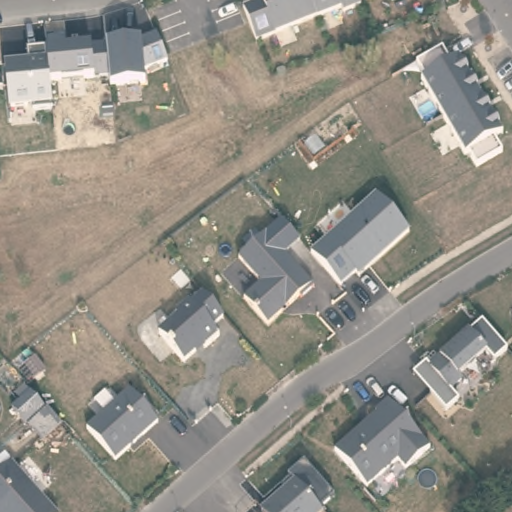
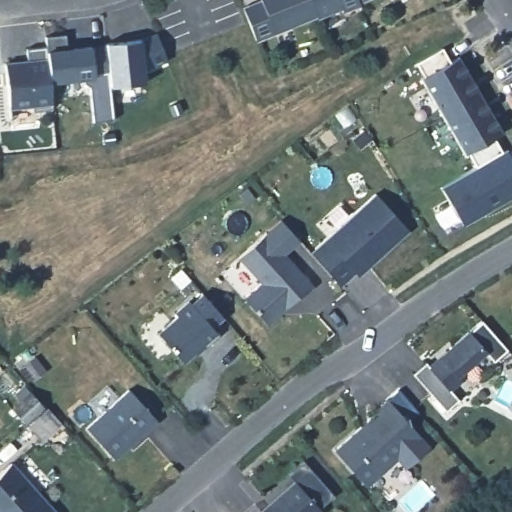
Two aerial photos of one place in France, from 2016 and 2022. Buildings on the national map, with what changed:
unchanged [(245,8),(262,1),(262,0),(360,0),(259,42),(245,8)]
unchanged [(5,62),(27,60),(26,49),(44,47),(44,36),(63,35),(66,47),(138,41),(155,36),(164,62),(142,72),(143,82),(108,85),(107,78),(49,85),(51,106),(8,109),(5,62)]
unchanged [(440,47),(449,62),(456,57),(501,131),(494,135),(500,150),(477,166),(467,150),(465,152),(419,81),(425,76),(416,63),(440,47)]
new [(500,150),(504,147),(512,159),(512,197),(462,226),(440,187),(477,166),(500,150)]
unchanged [(405,232),(359,276),(354,272),(342,285),(311,252),(373,195),(405,232)]
unchanged [(312,286),(267,325),(242,302),(262,283),(239,259),(265,235),(312,286)]
unchanged [(223,318),(213,327),(218,333),(186,361),(158,335),(200,296),(223,318)]
unchanged [(506,351),(493,361),(485,352),(456,377),(461,382),(450,391),(428,370),(479,322),(506,351)]
unchanged [(115,462),(87,429),(129,390),(158,422),(115,462)]
unchanged [(430,447),(406,470),(397,460),(367,486),(334,452),(386,402),(430,447)]
unchanged [(336,497),(321,512),(262,512),(261,511),(293,482),(289,477),(305,463),(336,497)]
unchanged [(55,512),(0,512),(0,473),(8,465),(55,512)]

